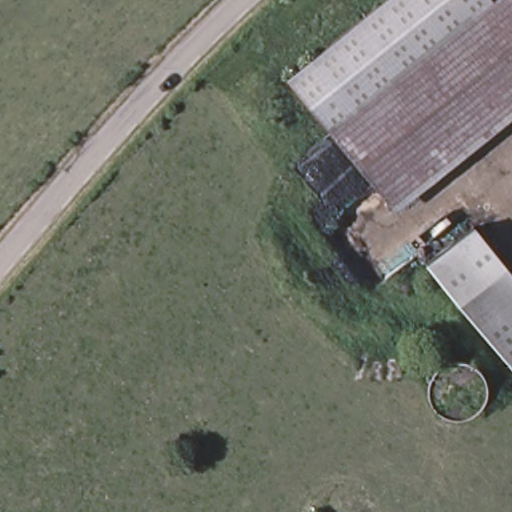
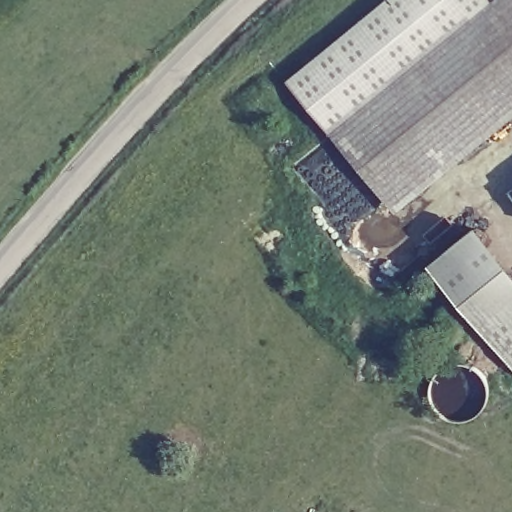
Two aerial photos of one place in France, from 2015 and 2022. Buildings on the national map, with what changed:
unchanged [(295,91),(407,0),(487,0),(497,12),(336,142),(295,91)]
unchanged [(512,116),(393,212),(336,142),(497,12),(512,0),(512,116)]
unchanged [(427,270),(474,232),(512,279),(512,375),(505,367),(427,270)]

